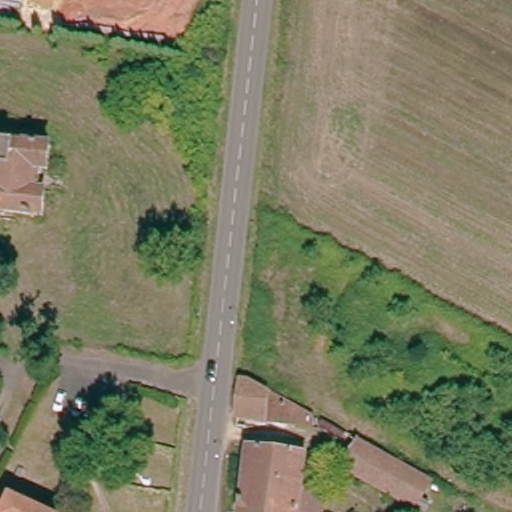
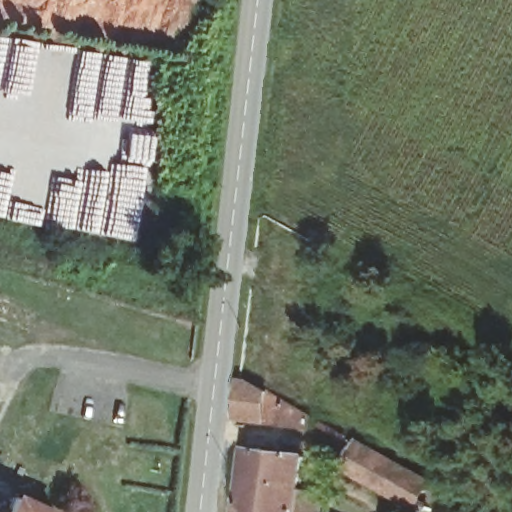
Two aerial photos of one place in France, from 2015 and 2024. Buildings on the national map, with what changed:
demolished [(50,180),(42,176),(35,199),(44,202),(36,228),(0,218),(0,135),(57,149),(50,180)]
unchanged [(240,372),(313,419),(309,433),(234,420),(240,372)]
unchanged [(345,439),(338,450),(321,438),(325,426),(345,439)]
unchanged [(418,512),(413,512),(342,471),(360,440),(435,482),(418,512)]
unchanged [(306,452),(303,485),(328,490),(326,512),(291,512),(246,505),(251,446),(306,452)]
unchanged [(0,508),(9,510),(14,498),(42,512),(0,512),(0,508)]

